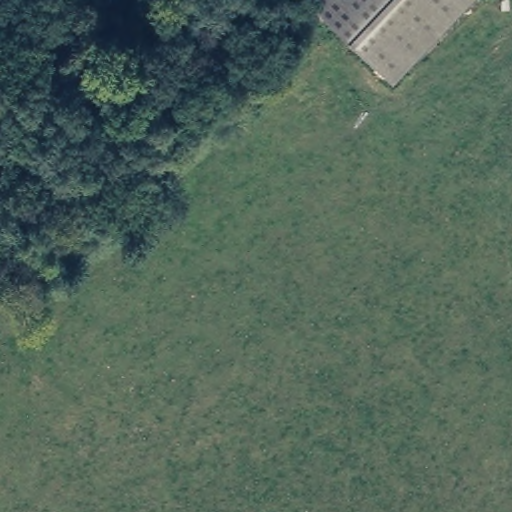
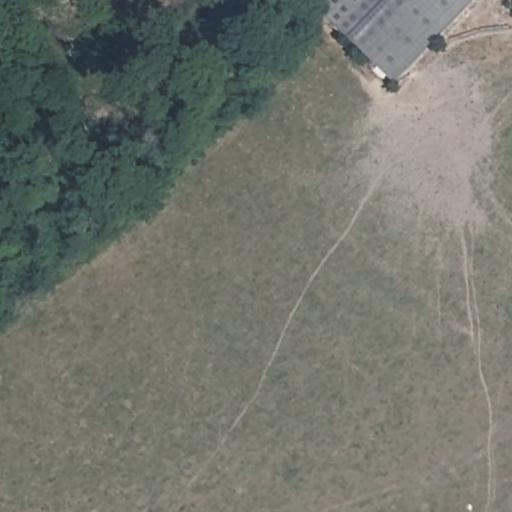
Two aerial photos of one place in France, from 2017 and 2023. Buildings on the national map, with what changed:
unchanged [(387,93),(305,10),(315,0),(477,0),(387,93)]

